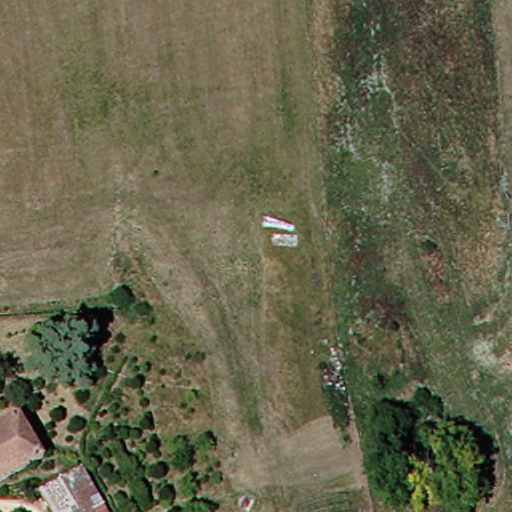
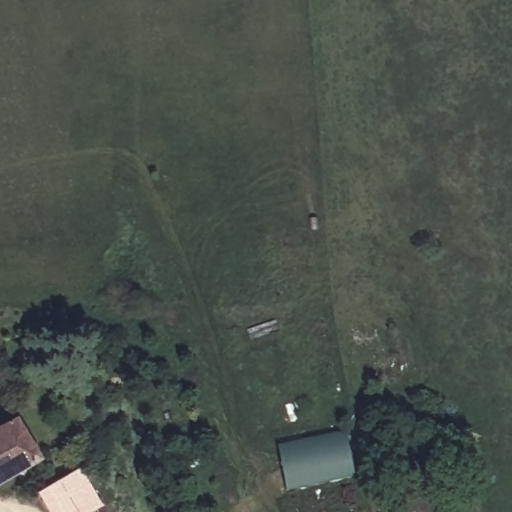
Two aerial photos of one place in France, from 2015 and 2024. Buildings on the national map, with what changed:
unchanged [(45,462),(0,487),(0,431),(23,418),(45,462)]
new [(346,428),(354,472),(286,486),(277,442),(346,428)]
unchanged [(94,504),(88,507),(90,512),(54,512),(43,491),(77,471),(94,504)]

